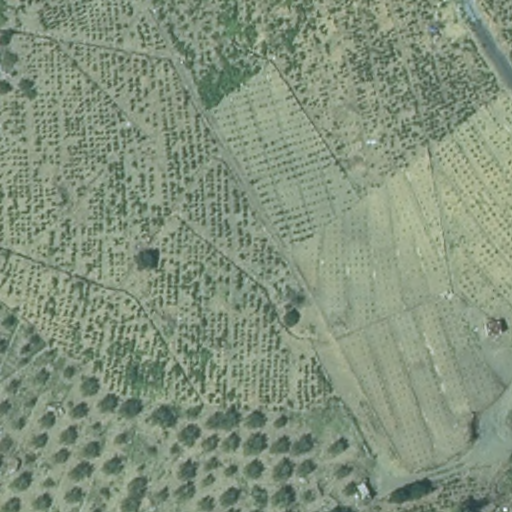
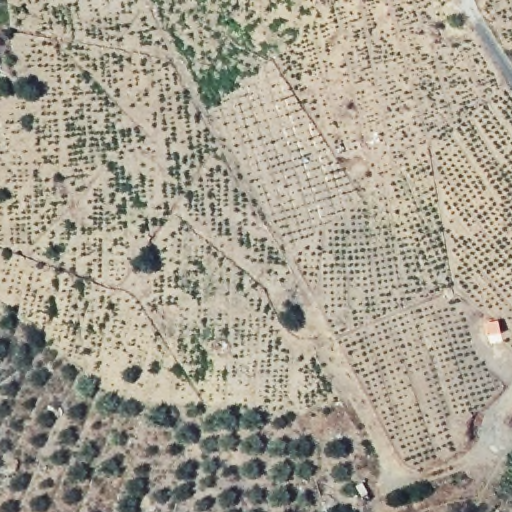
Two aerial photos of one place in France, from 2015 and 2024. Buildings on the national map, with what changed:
unchanged [(507,338),(491,342),(487,327),(503,322),(507,338)]

